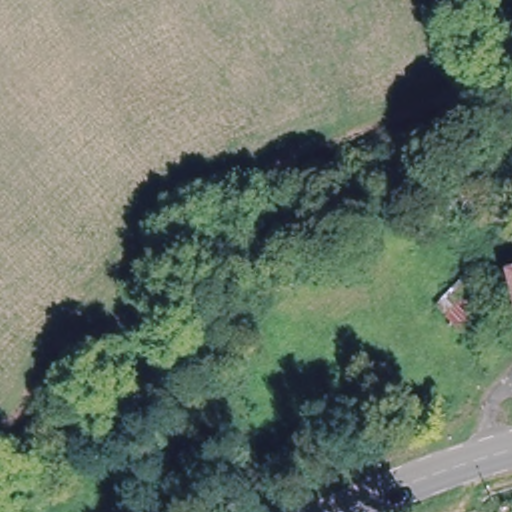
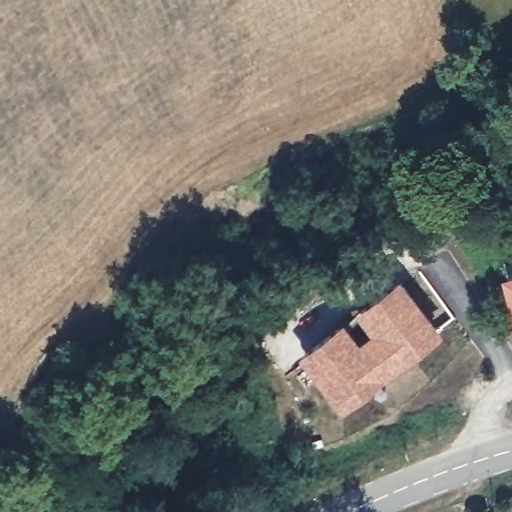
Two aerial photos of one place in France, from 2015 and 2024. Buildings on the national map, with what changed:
new [(341,316),(357,337),(366,330),(350,309),(397,273),(441,330),(408,359),(339,408),(294,351),(341,316)]
unchanged [(463,283),(493,321),(467,342),(438,307),(463,283)]

